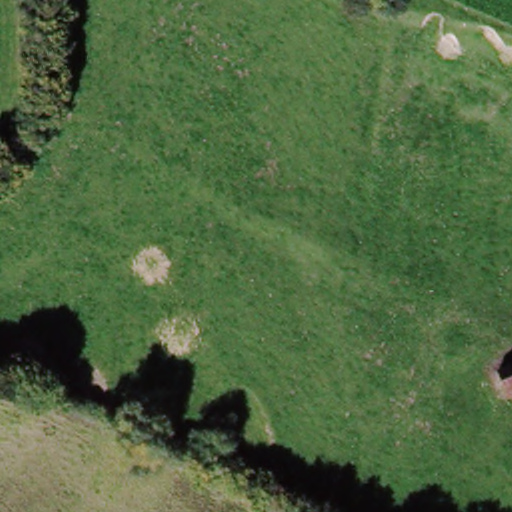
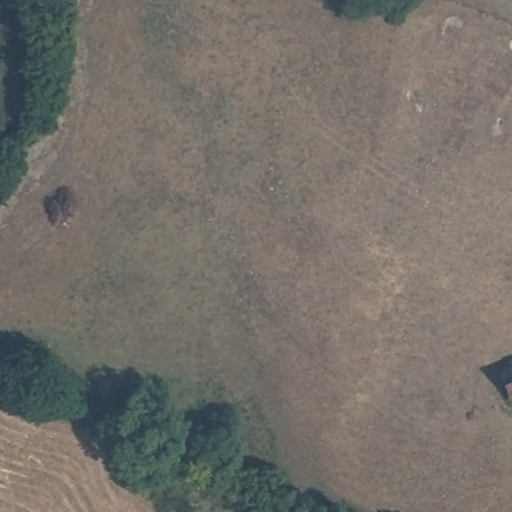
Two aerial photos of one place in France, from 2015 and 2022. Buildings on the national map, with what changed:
unchanged [(512,398),(510,399),(500,376),(512,371),(512,398)]

